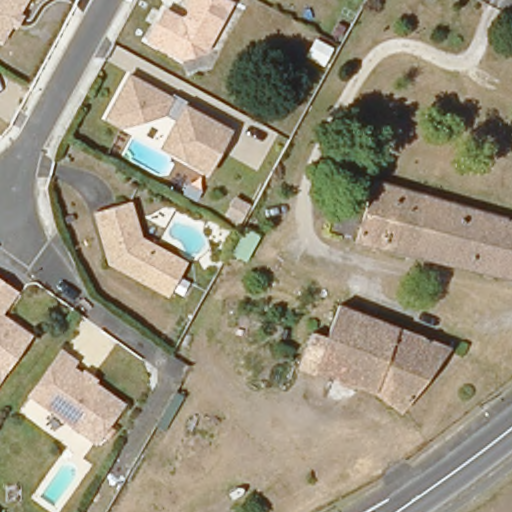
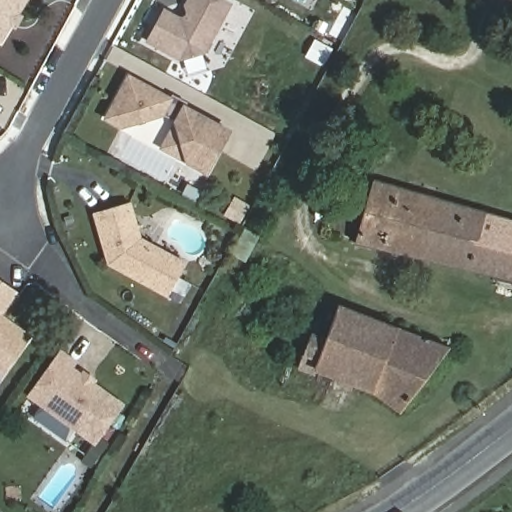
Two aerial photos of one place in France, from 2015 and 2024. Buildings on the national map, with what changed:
unchanged [(11,23),(1,40),(0,39),(0,0),(25,0),(16,15),(20,17),(15,26),(11,23)]
unchanged [(183,24),(191,22),(193,18),(191,10),(196,0),(220,0),(235,9),(209,56),(185,64),(152,46),(168,16),(183,24)]
unchanged [(223,150),(211,173),(193,163),(180,121),(166,114),(126,126),(111,118),(134,76),(220,124),(233,131),(223,150)]
unchanged [(486,213),(512,220),(512,279),(477,271),(473,270),(356,242),(373,181),(456,204),(486,213)]
unchanged [(130,207),(142,246),(188,270),(171,302),(112,270),(95,219),(130,207)]
unchanged [(14,294),(0,313),(0,283),(14,294)]
unchanged [(358,385),(315,369),(317,363),(303,358),(313,332),(327,337),(339,305),(399,328),(450,349),(403,411),(375,391),(358,385)]
unchanged [(28,338),(0,377),(0,318),(28,338)]
unchanged [(99,448),(34,401),(65,358),(79,368),(76,374),(86,381),(88,378),(99,386),(97,389),(126,410),(99,448)]

